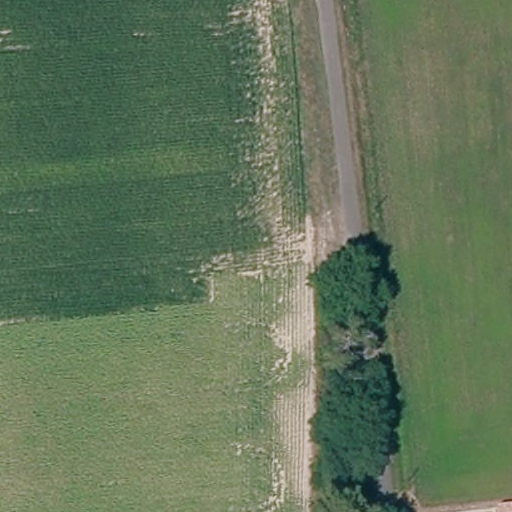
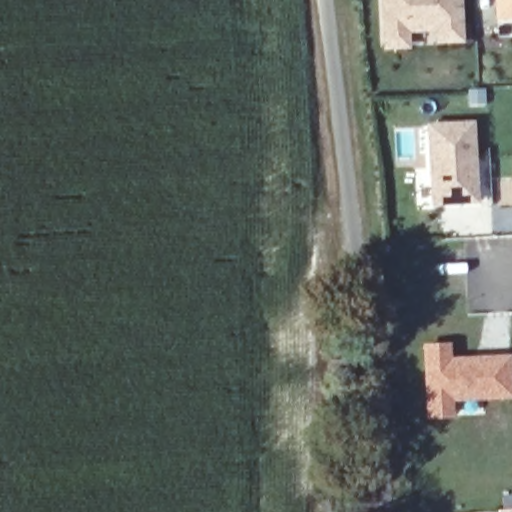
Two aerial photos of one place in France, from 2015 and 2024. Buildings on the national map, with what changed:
new [(434,45),(434,31),(410,33),(410,49),(383,50),(380,0),(462,0),(464,43),(434,45)]
new [(495,0),(512,0),(512,20),(497,21),(495,0)]
new [(475,120),(480,204),(430,208),(426,123),(475,120)]
new [(452,356),(512,353),(512,398),(455,403),(456,418),(424,419),(422,342),(451,340),(452,356)]
new [(499,509),(512,508),(512,512),(499,512),(499,509)]

